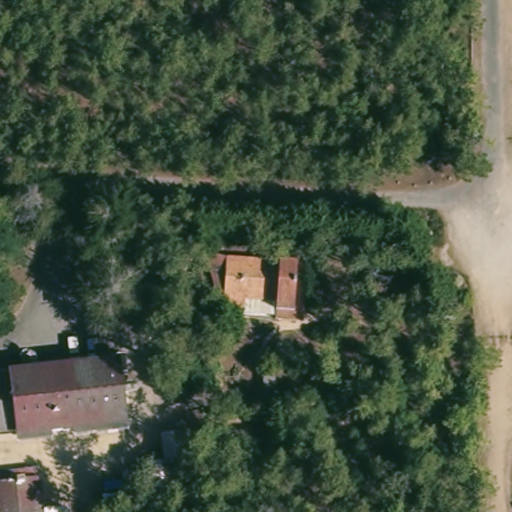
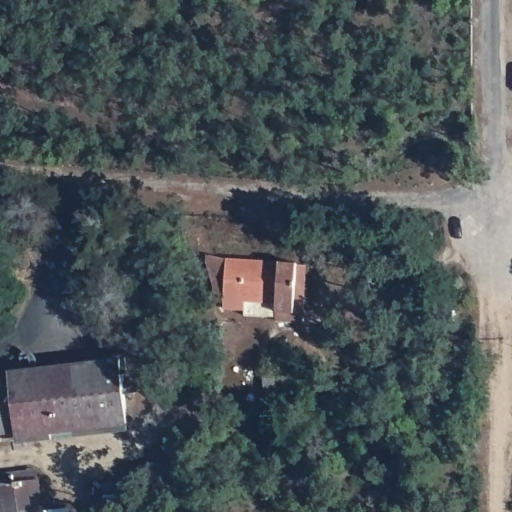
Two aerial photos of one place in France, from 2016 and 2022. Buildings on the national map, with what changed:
unchanged [(300,266),(295,317),(225,312),(230,261),(300,266)]
unchanged [(126,371),(131,421),(0,440),(0,386),(126,371)]
unchanged [(180,427),(205,423),(209,449),(182,453),(180,427)]
unchanged [(45,472),(48,512),(0,512),(0,476),(45,472)]
unchanged [(76,510),(76,512),(58,512),(76,510)]

